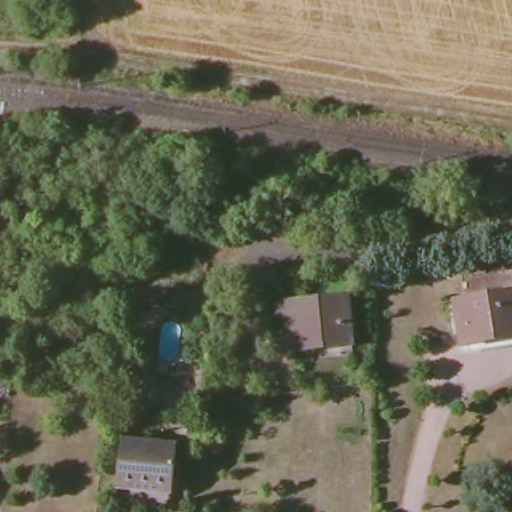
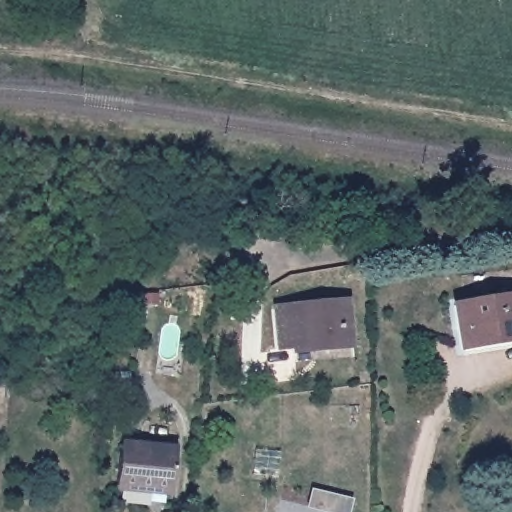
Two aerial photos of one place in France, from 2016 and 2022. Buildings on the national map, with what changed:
unchanged [(494,344),(458,350),(451,305),(512,295),(512,334),(492,337),(494,344)]
unchanged [(297,350),(297,343),(279,345),(275,306),(345,298),(350,343),(297,350)]
unchanged [(119,487),(124,443),(177,450),(172,495),(119,487)]
new [(352,502),(350,512),(326,512),(310,508),(315,492),(352,502)]

